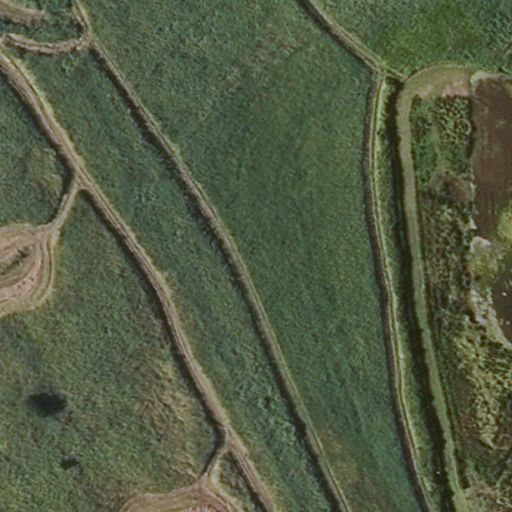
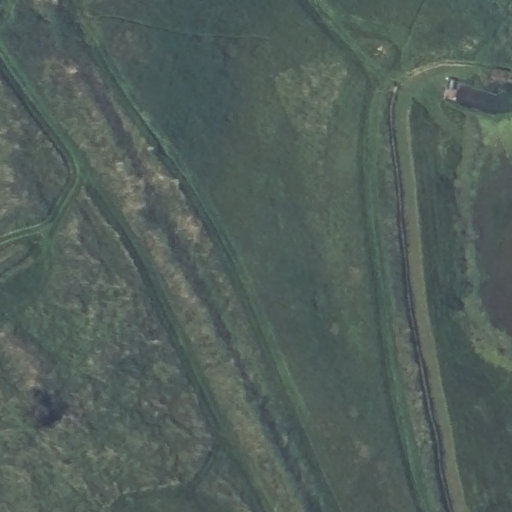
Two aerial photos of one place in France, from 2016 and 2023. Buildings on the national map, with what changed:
[]

